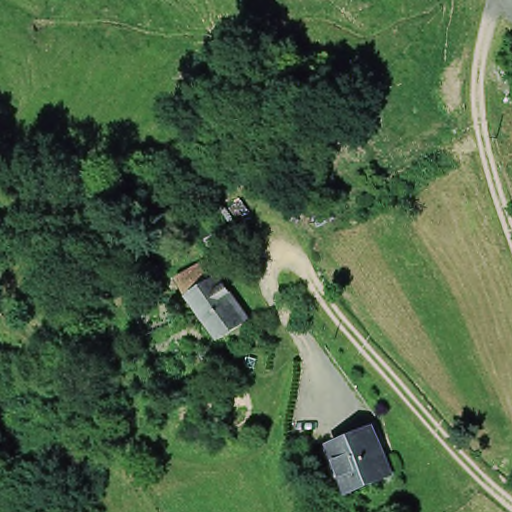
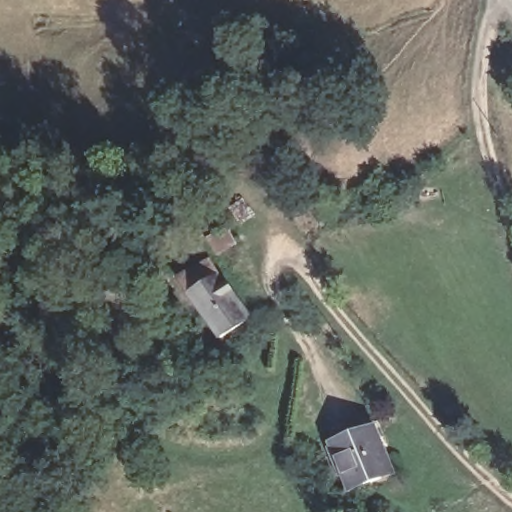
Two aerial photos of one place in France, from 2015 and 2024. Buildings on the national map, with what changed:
unchanged [(258,311),(225,331),(200,292),(194,282),(222,262),(229,273),(234,270),(258,311)]
unchanged [(370,425),(393,476),(350,493),(330,442),(370,425)]

